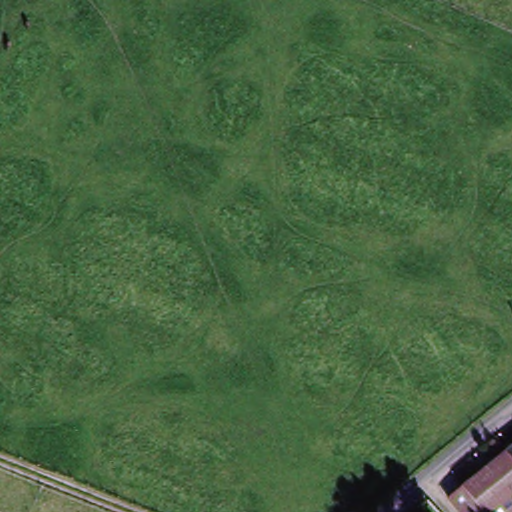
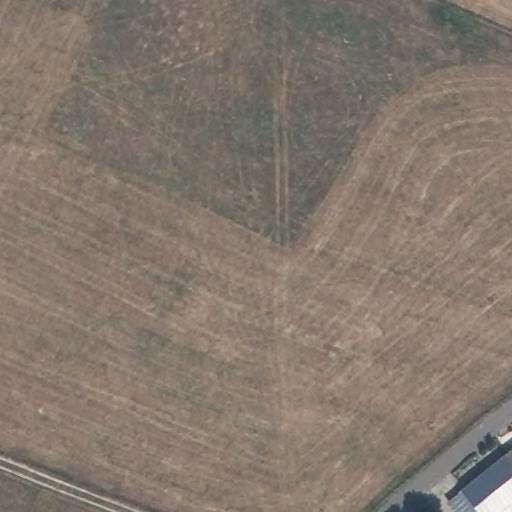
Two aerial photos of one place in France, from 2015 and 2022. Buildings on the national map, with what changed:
unchanged [(442,505),(499,460),(512,450),(512,498),(511,500),(512,501),(512,512),(448,512),(442,505)]

